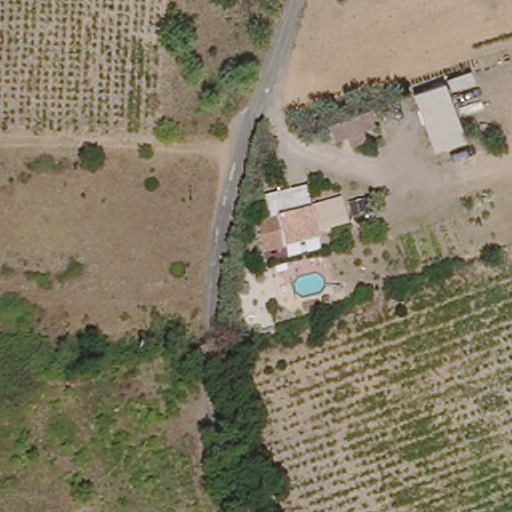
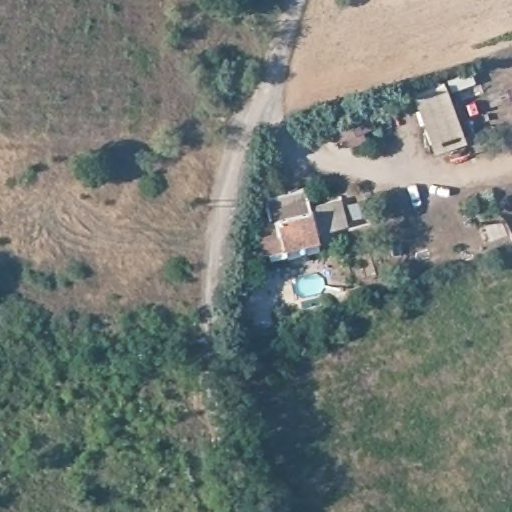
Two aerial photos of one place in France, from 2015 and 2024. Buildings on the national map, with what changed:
unchanged [(413,94),(472,71),(475,84),(450,94),(467,144),(435,154),(413,94)]
unchanged [(348,136),(333,142),(326,124),(369,109),(375,127),(364,131),(368,143),(351,147),(348,136)]
unchanged [(265,245),(263,230),(277,227),(276,221),(313,211),(341,205),(347,230),(319,237),(280,245),(279,242),(265,245)]

